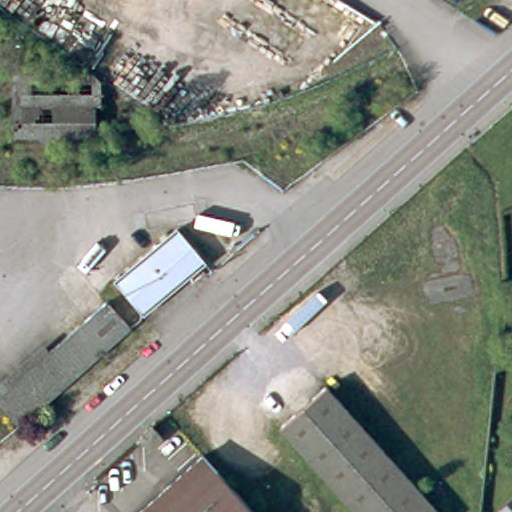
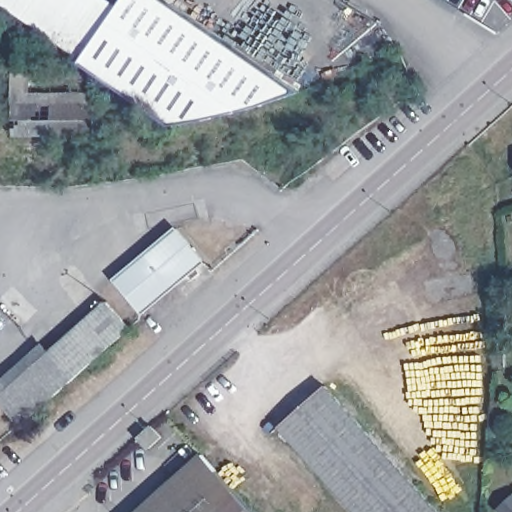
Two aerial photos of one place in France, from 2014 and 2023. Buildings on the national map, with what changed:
new [(0,0),(110,0),(119,6),(80,62),(0,5),(0,0)]
new [(169,124),(95,72),(93,71),(80,62),(119,6),(123,0),(164,0),(297,92),(169,124)]
unchanged [(17,134),(17,104),(15,104),(15,72),(93,71),(95,72),(94,134),(17,134)]
unchanged [(205,261),(144,313),(115,280),(177,229),(205,261)]
unchanged [(50,352),(107,301),(130,328),(74,377),(50,352)]
unchanged [(19,426),(0,404),(0,381),(42,343),(50,352),(74,377),(19,426)]
unchanged [(438,512),(357,512),(278,426),(322,385),(438,512)]
unchanged [(162,437),(148,448),(140,438),(152,427),(162,437)]
unchanged [(249,512),(132,512),(197,455),(249,512)]
unchanged [(512,499),(512,512),(504,512),(501,509),(512,499)]

